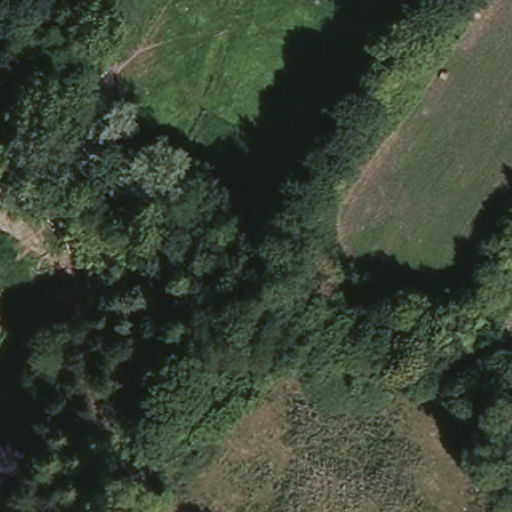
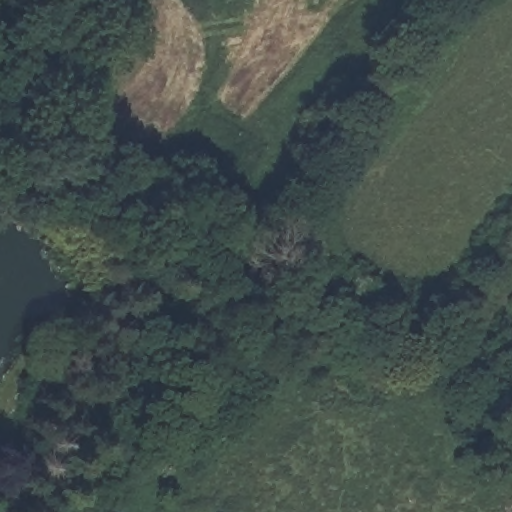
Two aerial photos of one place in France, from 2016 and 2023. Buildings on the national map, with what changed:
unchanged [(100,62),(108,67),(101,79),(93,75),(100,62)]

